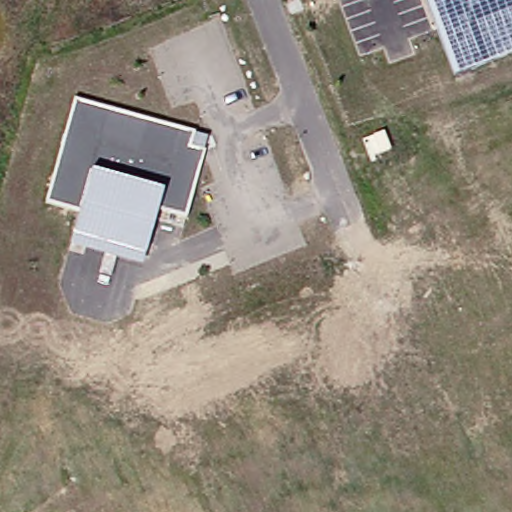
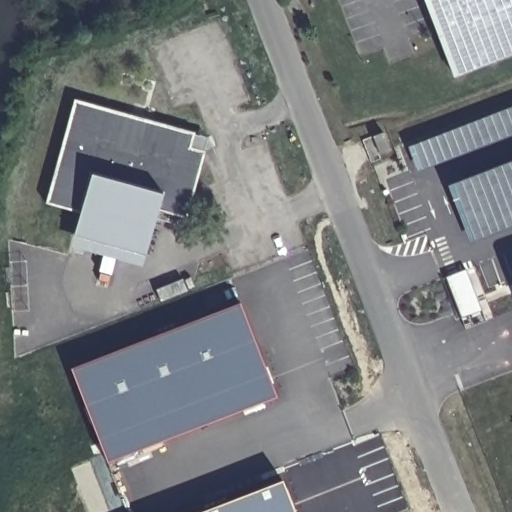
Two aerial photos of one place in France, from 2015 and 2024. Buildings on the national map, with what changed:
unchanged [(425,0),(512,0),(512,54),(452,76),(425,0)]
unchanged [(76,96),(211,134),(188,215),(160,208),(146,258),(74,238),(82,210),(48,201),(76,96)]
new [(460,318),(445,277),(441,268),(465,259),(468,268),(484,309),(460,318)]
new [(242,298),(278,391),(110,457),(74,364),(242,298)]
new [(283,480),(295,512),(198,512),(283,480)]

